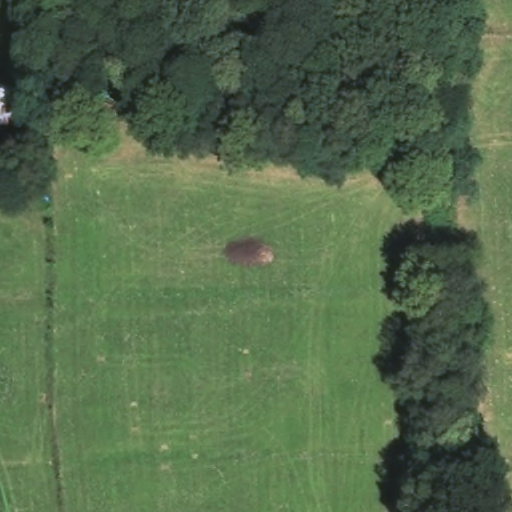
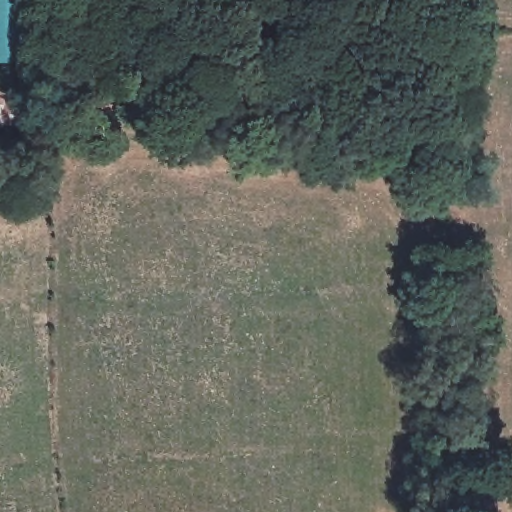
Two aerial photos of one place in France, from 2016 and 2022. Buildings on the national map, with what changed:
unchanged [(27,125),(0,126),(0,83),(33,89),(27,125)]

